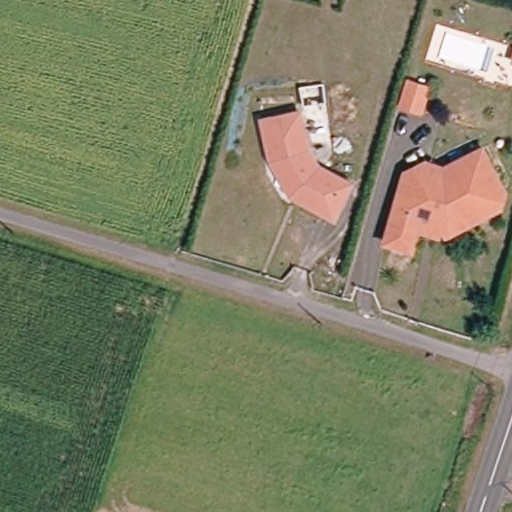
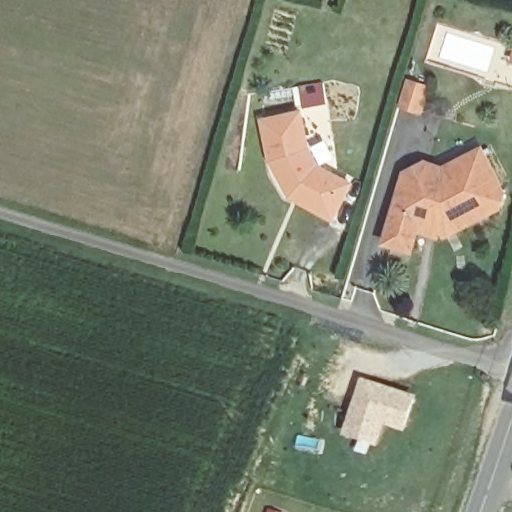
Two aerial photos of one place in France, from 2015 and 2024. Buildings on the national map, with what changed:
unchanged [(297,113),(305,148),(316,166),(349,184),(330,218),(297,199),(299,195),(284,188),(276,174),(273,158),(268,159),(259,121),(297,113)]
unchanged [(488,165),(444,185),(426,178),(419,165),(427,163),(444,169),(482,151),(488,165)]
unchanged [(414,232),(408,252),(381,243),(404,174),(419,165),(426,178),(444,185),(488,165),(503,197),(498,212),(443,237),(440,230),(436,232),(434,238),(414,232)]
new [(344,438),(362,379),(418,398),(406,434),(386,428),(379,448),(344,438)]

